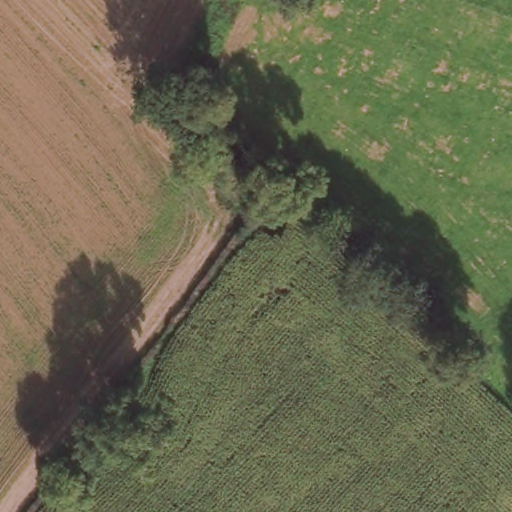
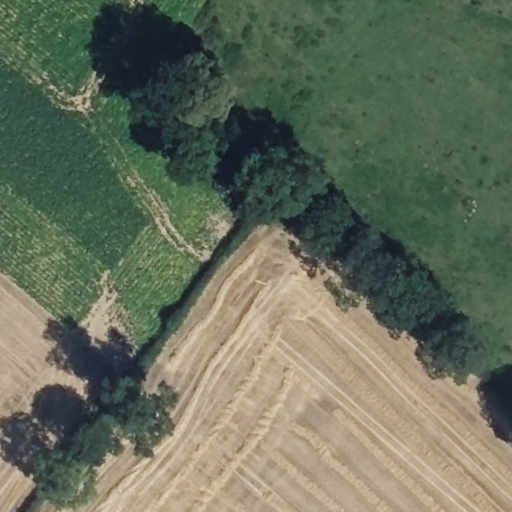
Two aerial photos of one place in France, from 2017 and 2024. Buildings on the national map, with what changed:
unchanged [(187,124),(189,120),(200,120),(203,125),(203,149),(187,150),(187,124)]

